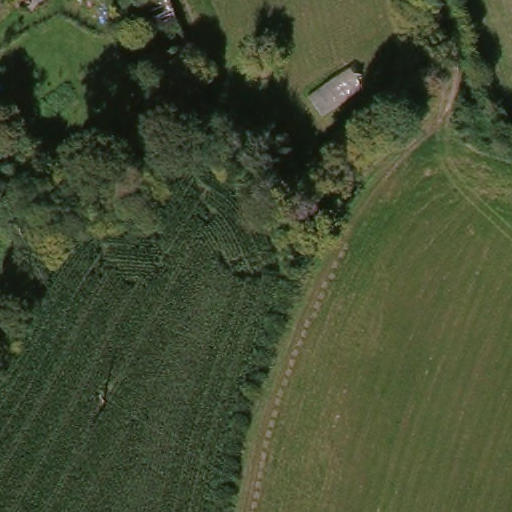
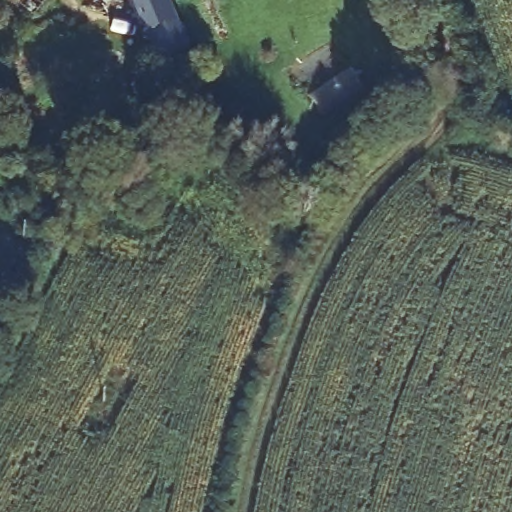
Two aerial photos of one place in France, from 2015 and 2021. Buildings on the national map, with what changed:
demolished [(166,62),(140,0),(174,0),(195,50),(166,62)]
unchanged [(8,256),(0,272),(0,253),(8,256)]

